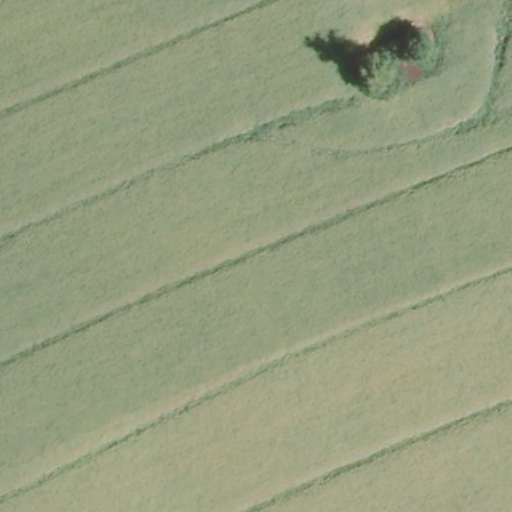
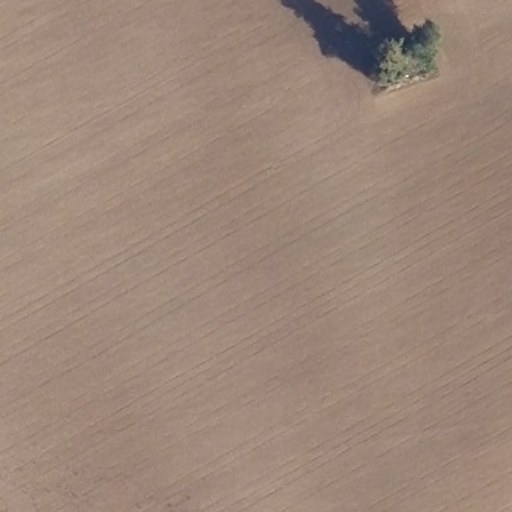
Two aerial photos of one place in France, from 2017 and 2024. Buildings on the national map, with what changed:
unchanged [(388,64),(418,55),(425,73),(395,81),(388,64)]

